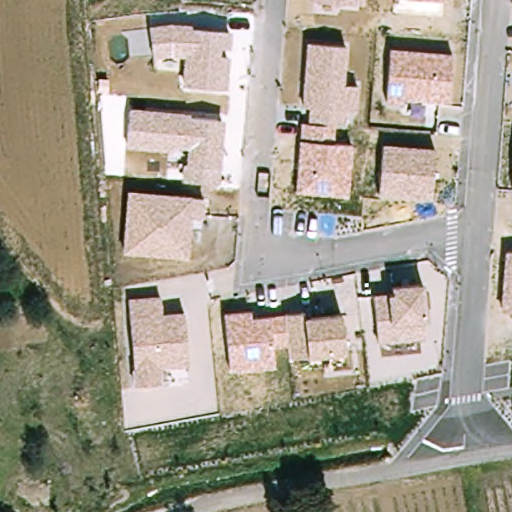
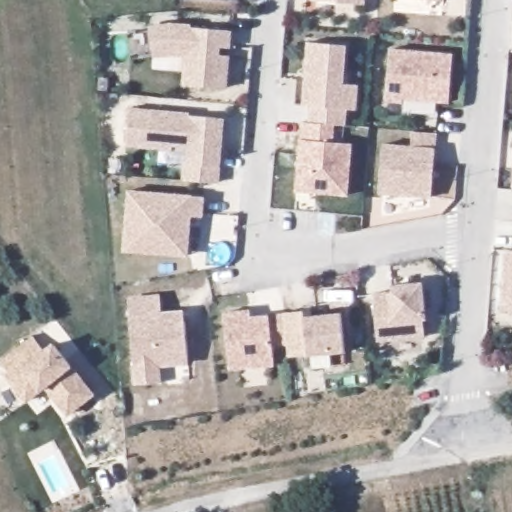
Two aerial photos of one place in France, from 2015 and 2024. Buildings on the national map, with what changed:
unchanged [(335,0),(364,0),(364,4),(335,0)]
unchanged [(155,57),(150,28),(173,24),(192,25),(193,30),(231,33),(231,48),(221,48),(220,56),(228,57),(226,89),(183,83),(185,56),(175,55),(155,57)]
unchanged [(348,196),(295,190),(300,142),(302,124),(307,124),(310,105),(304,104),(308,44),(347,47),(344,84),(358,87),(357,111),(345,110),(344,127),(334,127),(333,142),(351,144),(348,196)]
unchanged [(404,104),(387,103),(391,49),(451,55),(448,101),(405,97),(404,104)]
unchanged [(183,163),(188,163),(189,148),(173,148),(173,152),(128,148),(130,109),(191,114),(190,119),(223,121),(220,168),(218,184),(183,181),(183,163)]
unchanged [(435,149),(430,198),(379,194),(384,144),(435,149)]
unchanged [(204,199),(203,217),(190,216),(188,260),(121,253),(128,190),(190,196),(204,199)]
unchanged [(505,250),(512,251),(512,310),(502,308),(505,250)]
unchanged [(391,286),(422,282),(425,319),(425,338),(379,342),(375,294),(391,286)]
unchanged [(162,313),(182,311),(188,364),(160,369),(161,382),(135,385),(128,298),(160,296),(162,313)]
unchanged [(253,318),(303,311),(305,316),(340,312),(345,351),(306,355),(290,358),(288,342),(270,344),(271,367),(229,371),(226,311),(251,308),(253,318)]
new [(28,337),(41,352),(49,344),(92,392),(68,413),(44,386),(26,403),(7,381),(10,379),(0,368),(0,361),(28,337)]

